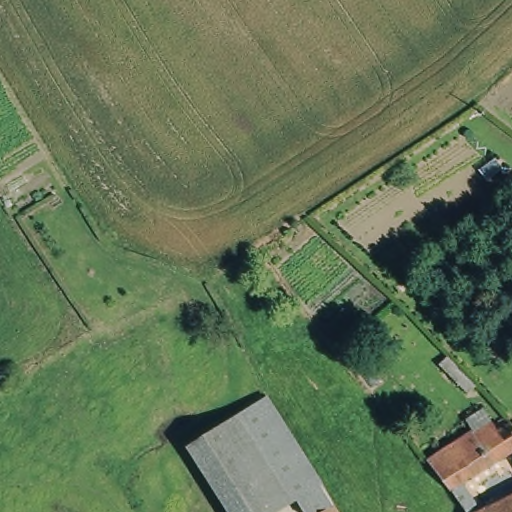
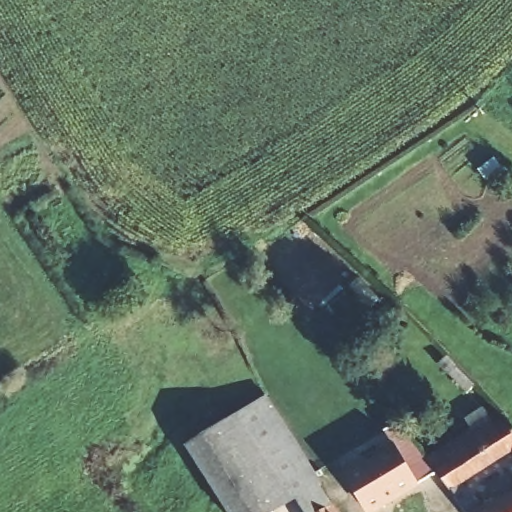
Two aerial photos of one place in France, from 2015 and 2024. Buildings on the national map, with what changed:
unchanged [(476,386),(468,395),(438,363),(445,355),(476,386)]
unchanged [(320,484),(295,500),(276,512),(228,512),(185,446),(197,439),(267,395),(320,484)]
unchanged [(422,460),(485,418),(490,423),(502,416),(503,418),(512,430),(512,447),(460,481),(480,507),(508,495),(512,493),(512,512),(462,512),(445,489),(422,460)]
new [(365,512),(345,475),(393,445),(384,431),(401,424),(425,458),(422,460),(433,473),(376,512),(365,512)]
unchanged [(303,512),(295,500),(320,484),(338,512),(303,512)]

